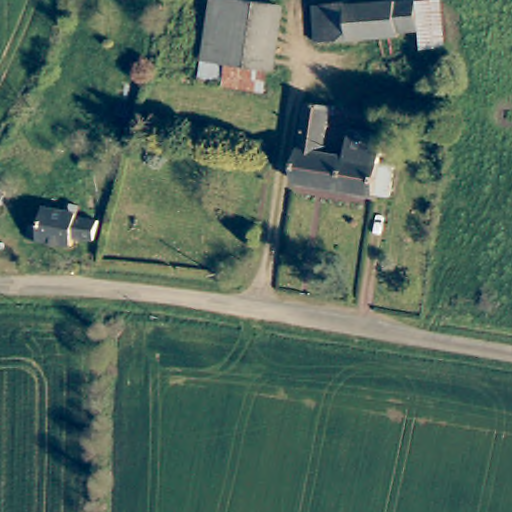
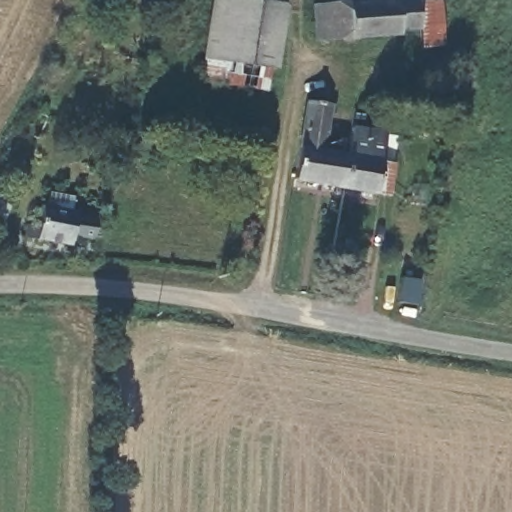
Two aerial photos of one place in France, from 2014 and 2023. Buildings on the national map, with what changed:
unchanged [(204,80),(214,0),(245,0),(283,5),(271,88),(204,80)]
unchanged [(318,44),(315,8),(346,7),(346,10),(419,4),(419,8),(422,32),(401,34),(401,38),(318,44)]
unchanged [(401,34),(422,32),(419,8),(442,6),(446,51),(403,55),(401,38),(401,34)]
unchanged [(377,198),(342,192),(296,184),(309,107),(333,110),(325,157),(347,161),(352,134),(386,140),(382,167),(396,170),(392,200),(377,198)]
unchanged [(96,238),(74,234),(72,244),(30,236),(30,226),(41,227),(44,207),(79,213),(78,218),(99,220),(96,238)]

